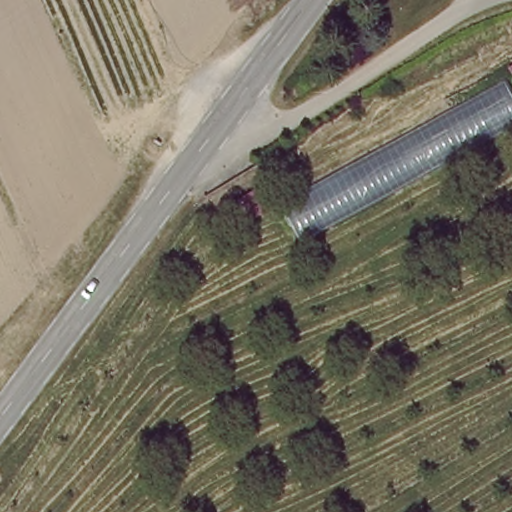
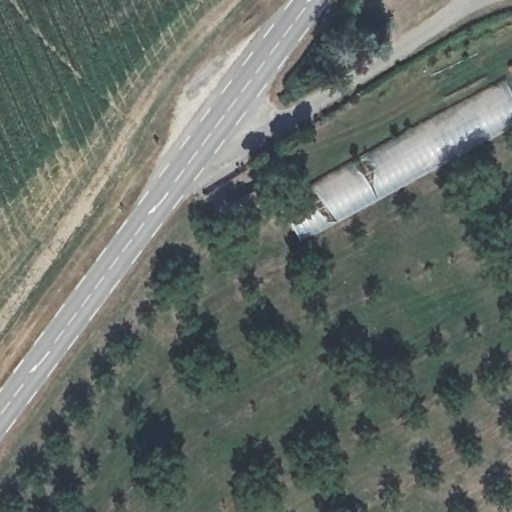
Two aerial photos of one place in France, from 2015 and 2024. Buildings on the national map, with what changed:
unchanged [(276,209),(510,77),(512,82),(512,131),(302,246),(276,209)]
unchanged [(266,219),(224,242),(209,216),(251,193),(266,219)]

